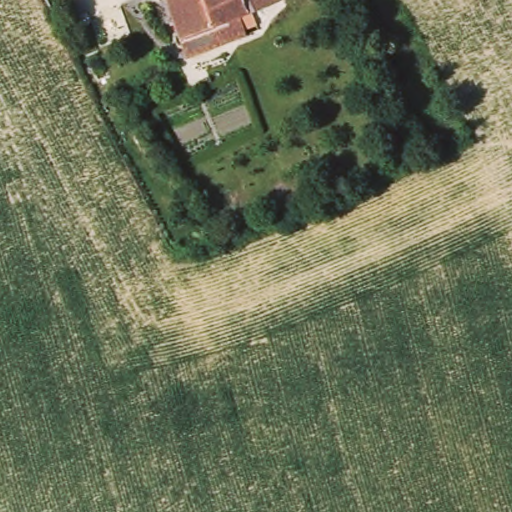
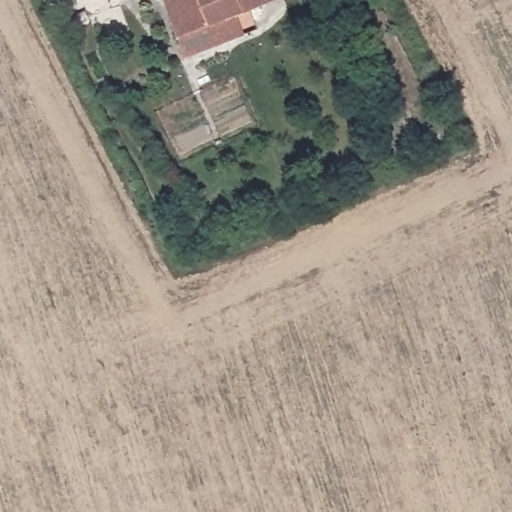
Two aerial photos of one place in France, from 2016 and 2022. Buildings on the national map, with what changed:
unchanged [(300,9),(301,13),(271,23),(270,21),(264,3),(245,9),(246,11),(247,14),(250,24),(238,29),(240,35),(226,40),(195,50),(185,54),(167,0),(296,0),(300,9)]

